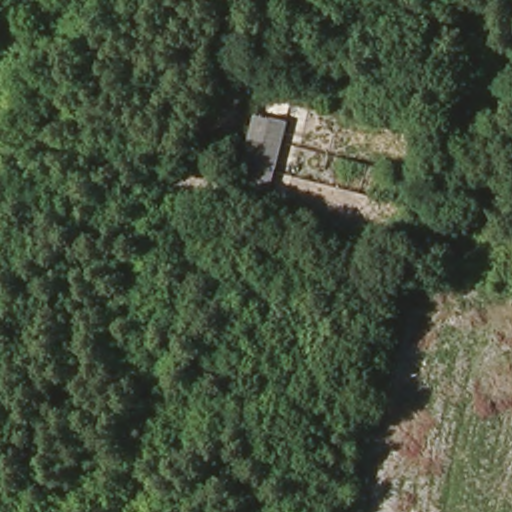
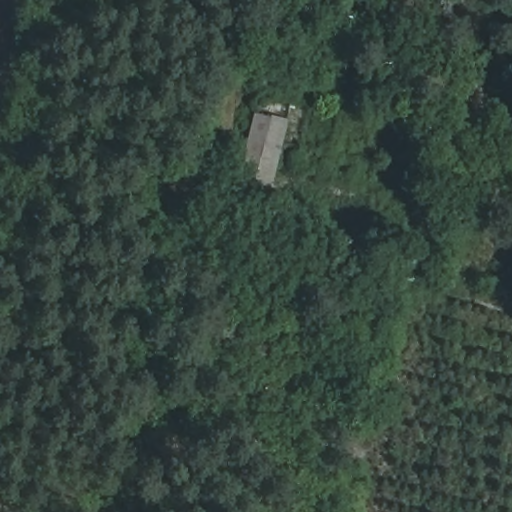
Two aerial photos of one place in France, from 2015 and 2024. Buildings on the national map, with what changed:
unchanged [(263,217),(230,212),(255,115),(286,121),(263,217)]

